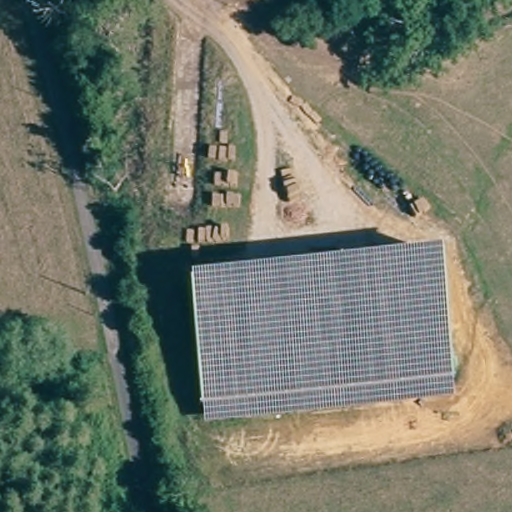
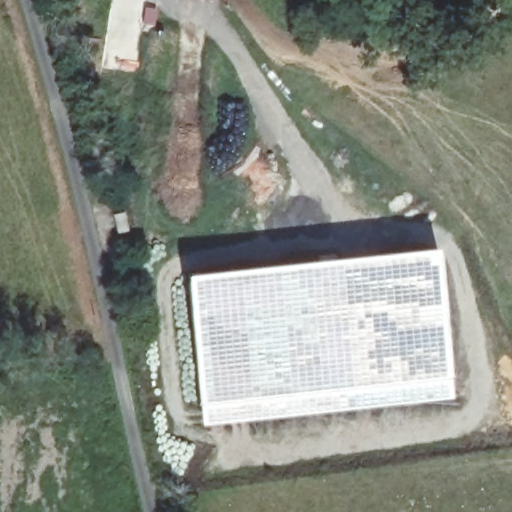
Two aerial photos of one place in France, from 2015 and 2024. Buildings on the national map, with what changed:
unchanged [(189,279),(440,252),(455,377),(202,404),(189,279)]
unchanged [(455,377),(456,392),(205,419),(202,404),(455,377)]

